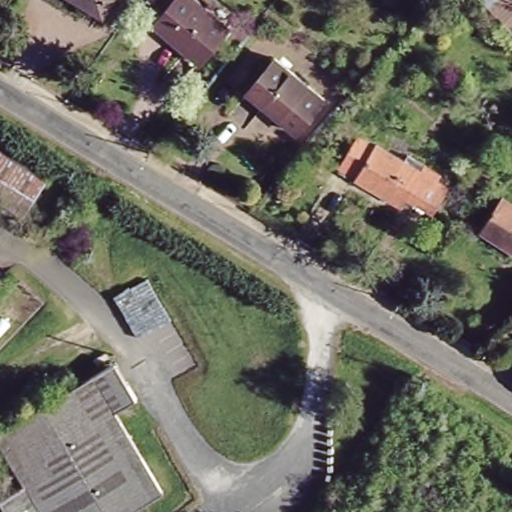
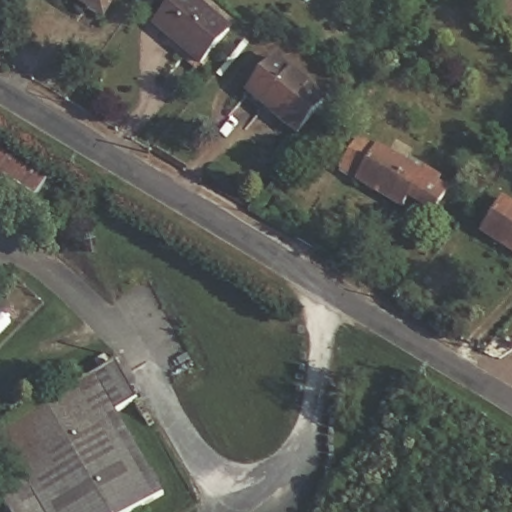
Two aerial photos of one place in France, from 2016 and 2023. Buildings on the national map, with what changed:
unchanged [(100,20),(63,0),(112,0),(100,20)]
unchanged [(204,63),(155,25),(174,0),(193,0),(232,29),(204,63)]
unchanged [(476,0),(512,0),(512,37),(476,0)]
unchanged [(320,100),(293,133),(268,112),(273,106),(247,85),(270,59),(320,100)]
unchanged [(410,214),(344,173),(365,138),(432,179),(410,214)]
unchanged [(25,214),(0,201),(0,155),(44,179),(25,214)]
unchanged [(492,176),(484,186),(473,177),(480,167),(492,176)]
unchanged [(480,234),(502,198),(512,205),(512,253),(480,234)]
unchanged [(126,512),(10,512),(0,495),(0,494),(21,482),(0,444),(0,429),(114,362),(137,402),(114,415),(159,492),(126,512)]
unchanged [(406,484),(395,476),(402,466),(413,473),(406,484)]

